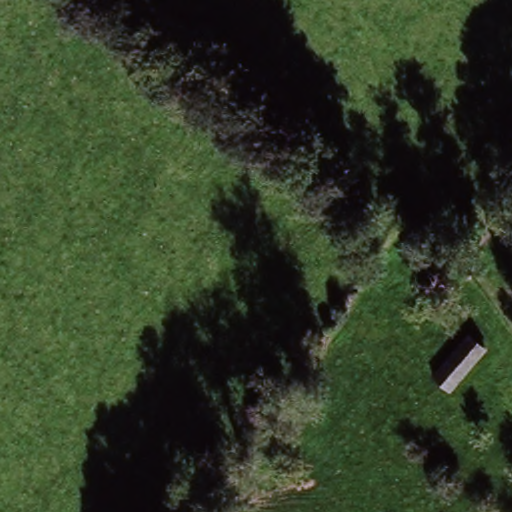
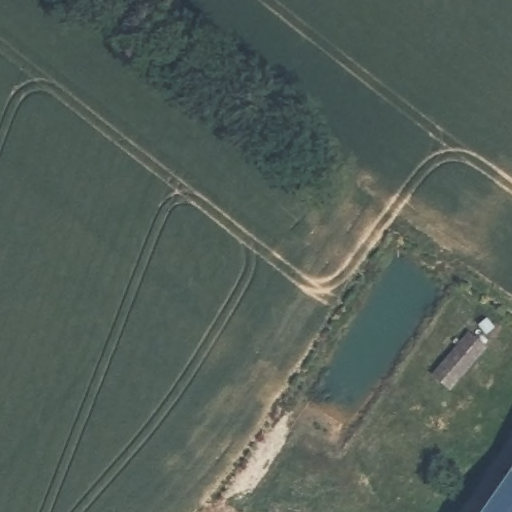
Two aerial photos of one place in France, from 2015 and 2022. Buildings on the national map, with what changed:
unchanged [(457,394),(437,382),(472,334),(490,348),(457,394)]
new [(512,468),(512,512),(481,512),(512,468)]

